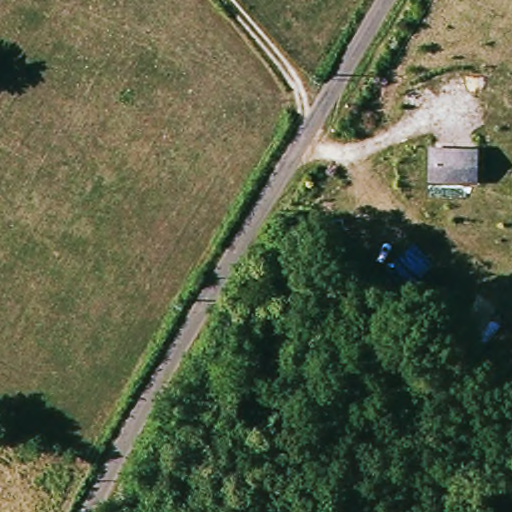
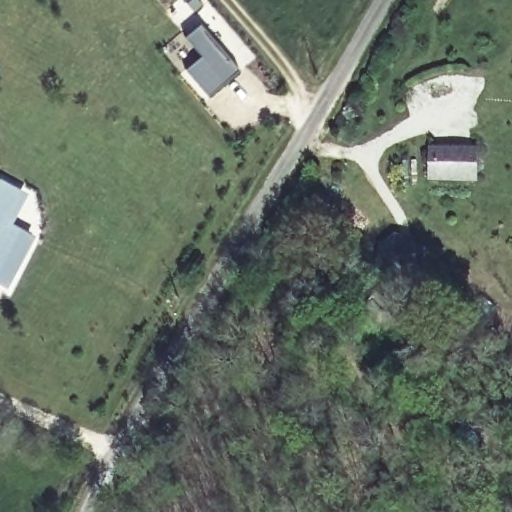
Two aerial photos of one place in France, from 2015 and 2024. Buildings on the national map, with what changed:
new [(201,57),(185,38),(202,25),(240,72),(207,98),(185,70),(201,57)]
unchanged [(467,150),(467,180),(436,179),(437,149),(467,150)]
new [(14,220),(37,235),(5,290),(0,287),(0,176),(32,192),(14,220)]

